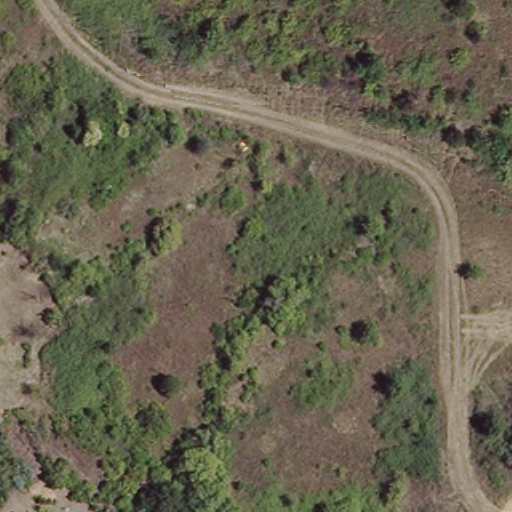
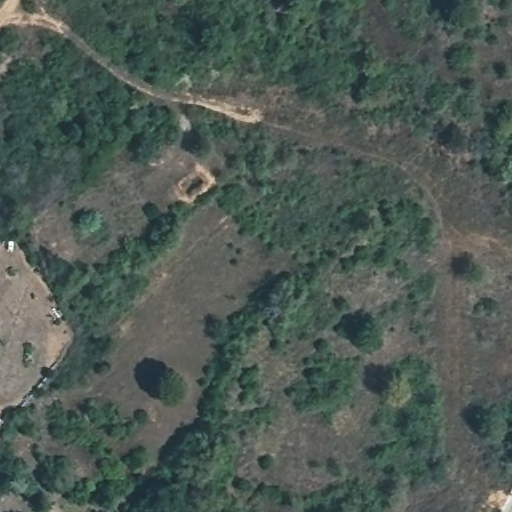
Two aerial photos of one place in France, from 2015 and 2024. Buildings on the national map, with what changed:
[]

